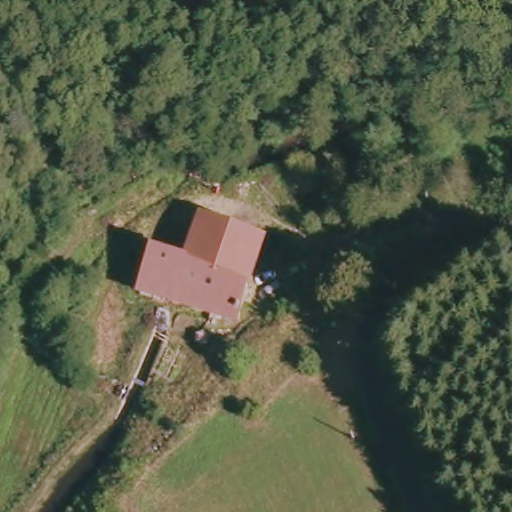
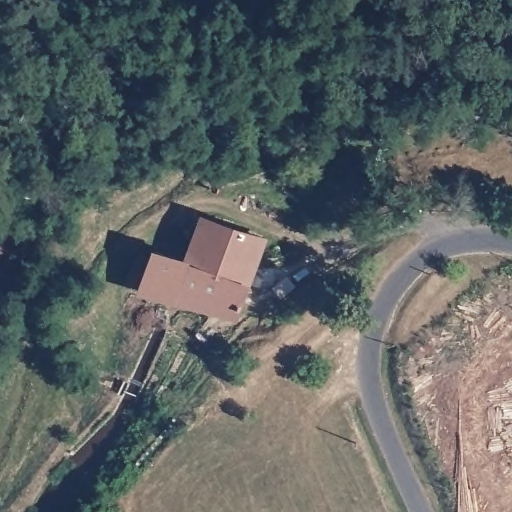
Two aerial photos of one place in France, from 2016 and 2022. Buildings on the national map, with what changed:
unchanged [(130,278),(145,240),(172,252),(193,209),(256,234),(225,312),(218,332),(208,342),(192,338),(203,313),(165,295),(149,287),(130,278)]

